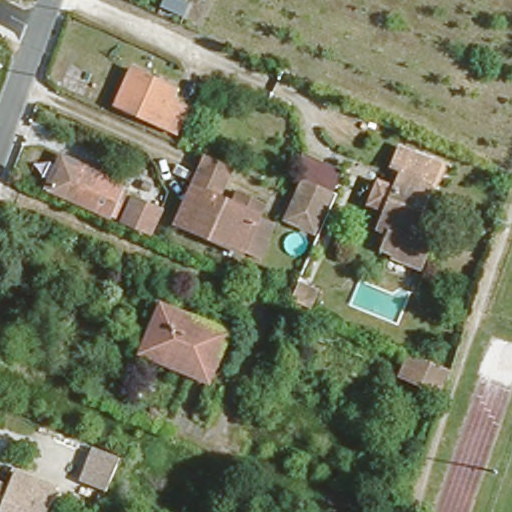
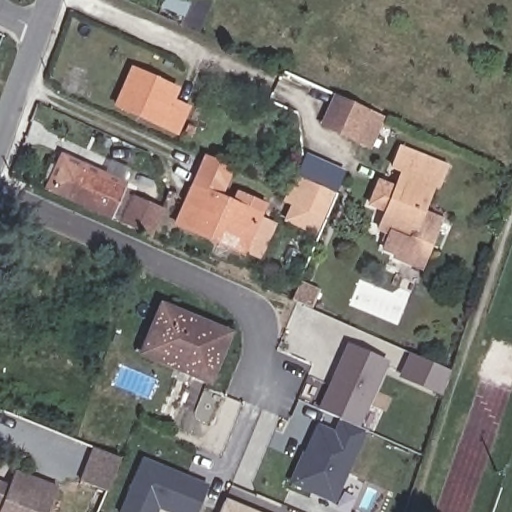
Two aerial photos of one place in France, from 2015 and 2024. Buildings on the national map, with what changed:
unchanged [(192,107),(182,130),(122,103),(138,69),(183,89),(178,100),(192,107)]
new [(338,97),(363,107),(351,133),(326,122),(338,97)]
unchanged [(425,240),(416,263),(390,252),(392,249),(380,244),(385,232),(373,226),(381,207),(366,201),(373,182),(389,189),(399,166),(390,162),(399,143),(441,162),(410,234),(425,240)]
unchanged [(124,188),(115,185),(105,209),(43,182),(59,147),(104,165),(107,157),(125,165),(121,173),(129,177),(124,188)]
unchanged [(257,252),(176,216),(191,179),(202,152),(227,162),(215,189),(231,196),(235,186),(262,197),(257,207),(273,214),(257,252)]
unchanged [(283,213),(300,174),(327,186),(311,225),(283,213)]
unchanged [(123,219),(133,194),(158,204),(147,229),(123,219)]
unchanged [(289,307),(296,290),(313,297),(306,315),(289,307)]
unchanged [(144,340),(160,301),(161,297),(229,326),(227,330),(208,376),(190,368),(141,347),(144,340)]
new [(351,343),(389,362),(358,426),(342,419),(321,409),(351,343)]
unchanged [(441,393),(401,377),(409,357),(447,374),(441,393)]
new [(304,460),(307,462),(310,455),(307,453),(320,425),(336,432),(342,419),(358,426),(369,431),(338,502),(294,483),(304,460)]
unchanged [(80,480),(91,447),(116,455),(101,487),(80,480)]
new [(144,458),(208,485),(197,512),(173,512),(160,507),(157,512),(121,512),(144,458)]
unchanged [(13,471),(57,486),(47,512),(0,512),(0,481),(8,484),(13,471)]
new [(225,499),(256,512),(219,512),(225,499)]

